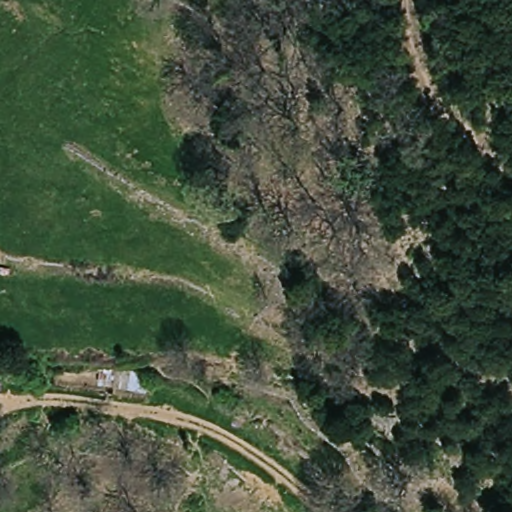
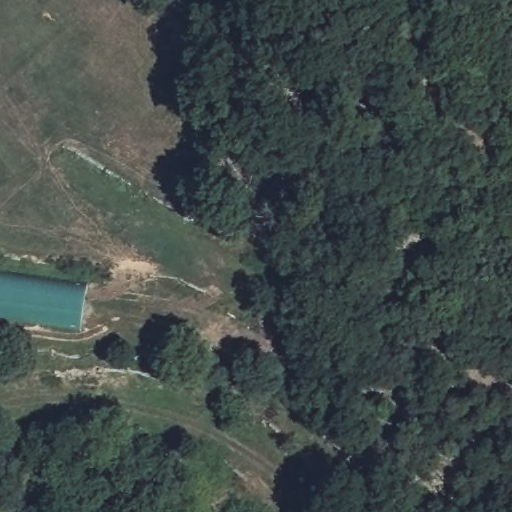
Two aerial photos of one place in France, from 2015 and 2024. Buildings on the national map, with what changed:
new [(87,283),(80,329),(0,318),(0,271),(87,283)]
demolished [(152,373),(147,396),(98,387),(101,366),(152,373)]

